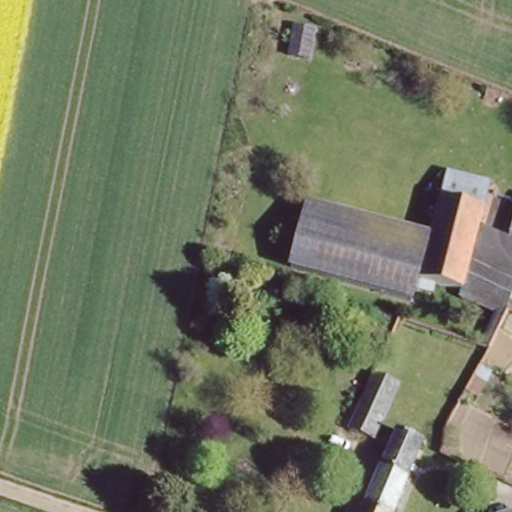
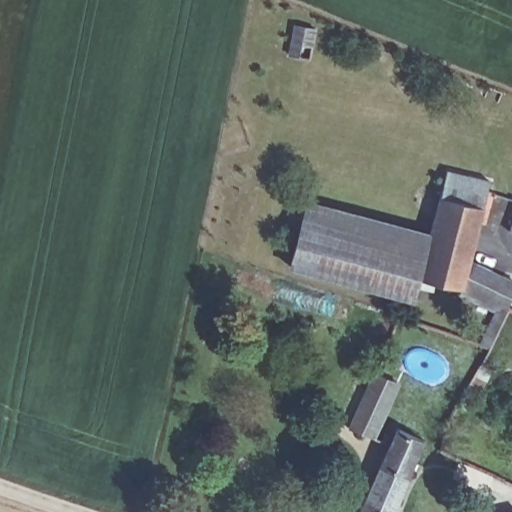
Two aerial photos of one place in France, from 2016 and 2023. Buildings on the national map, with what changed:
unchanged [(294,23),(315,26),(310,56),(289,52),(294,23)]
unchanged [(432,237),(442,185),(444,174),(489,183),(485,196),(468,269),(461,297),(421,288),(432,237)]
unchanged [(432,237),(421,288),(418,302),(324,284),(293,279),(304,214),(332,219),(432,237)]
unchanged [(511,235),(512,232),(512,235),(511,235)]
unchanged [(468,269),(512,290),(512,307),(511,309),(506,318),(495,313),(461,297),(468,269)]
unchanged [(374,372),(394,381),(369,436),(350,428),(374,372)]
unchanged [(385,432),(391,434),(395,425),(424,439),(395,512),(361,512),(387,445),(380,442),(385,432)]

